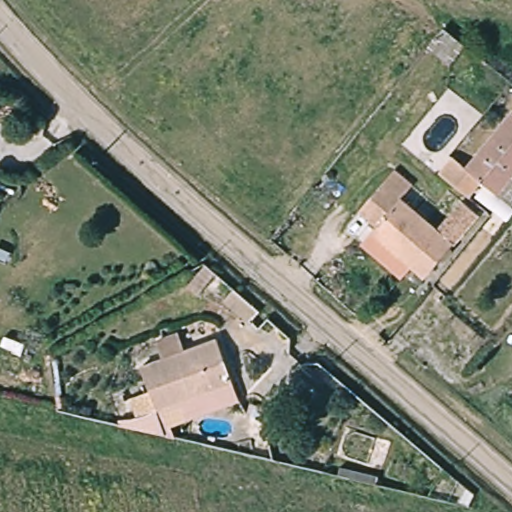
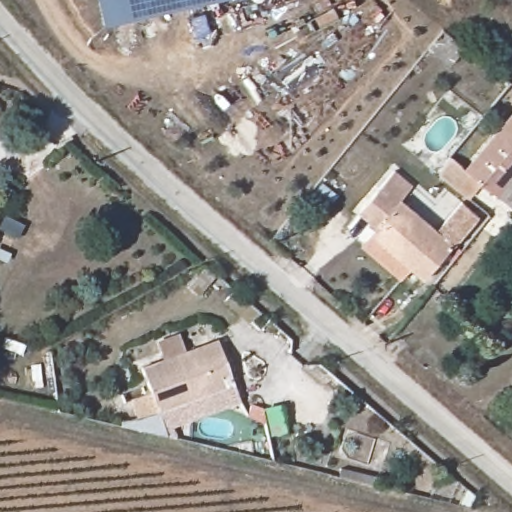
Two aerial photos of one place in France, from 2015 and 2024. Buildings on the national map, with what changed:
new [(100,0),(206,0),(105,24),(100,0)]
unchanged [(495,197),(480,184),(466,200),(436,177),(450,160),(462,170),(510,114),(512,116),(512,176),(495,197)]
unchanged [(396,168),(416,183),(403,199),(436,228),(461,197),(478,209),(427,275),(374,233),(382,223),(363,207),(396,168)]
unchanged [(231,380),(136,416),(128,396),(148,389),(139,365),(213,336),(231,380)]

